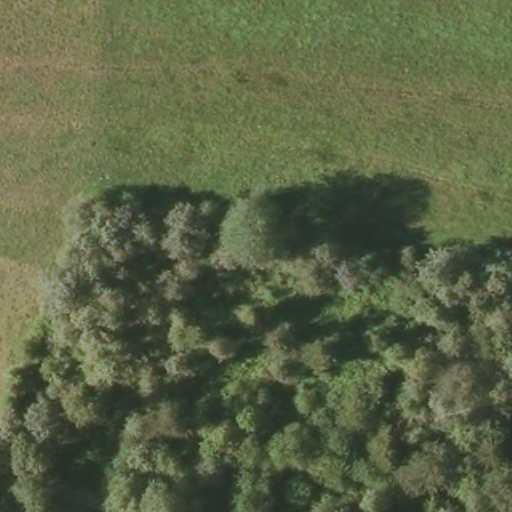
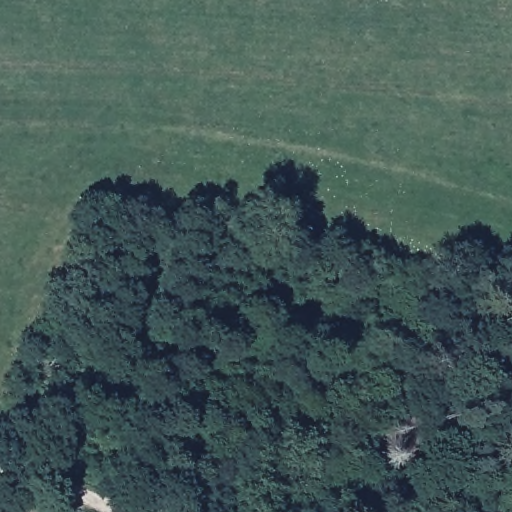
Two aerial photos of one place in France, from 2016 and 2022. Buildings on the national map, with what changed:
unchanged [(14,512),(0,512),(0,510),(14,509),(14,512)]

